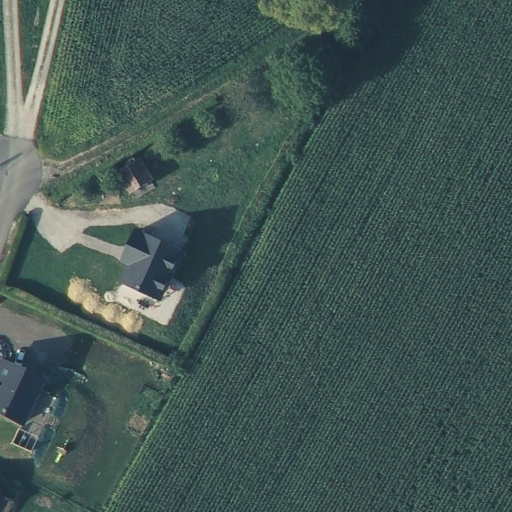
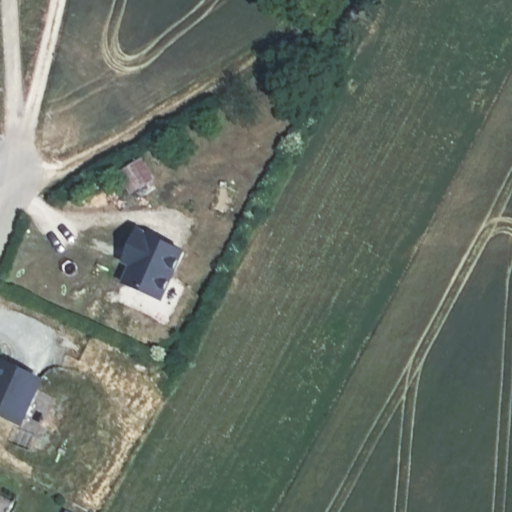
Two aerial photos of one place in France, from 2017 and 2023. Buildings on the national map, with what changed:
unchanged [(152,174),(132,187),(122,170),(142,159),(152,174)]
unchanged [(122,284),(128,267),(121,263),(136,230),(187,253),(163,302),(122,284)]
unchanged [(44,380),(22,429),(0,417),(0,359),(44,380)]

